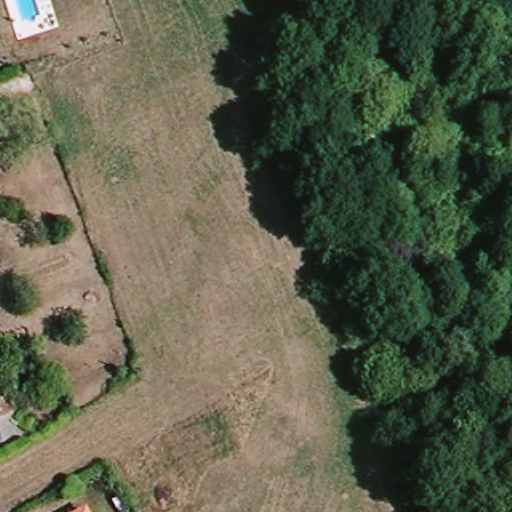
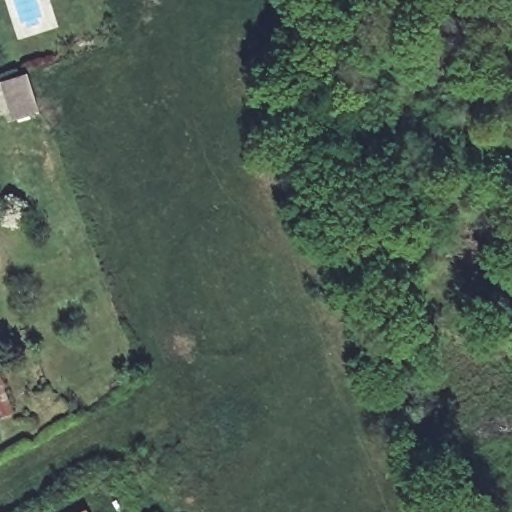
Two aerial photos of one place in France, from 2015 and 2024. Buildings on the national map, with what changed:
new [(34,104),(5,112),(0,95),(0,81),(26,74),(34,104)]
unchanged [(0,384),(7,407),(0,410),(0,384)]

